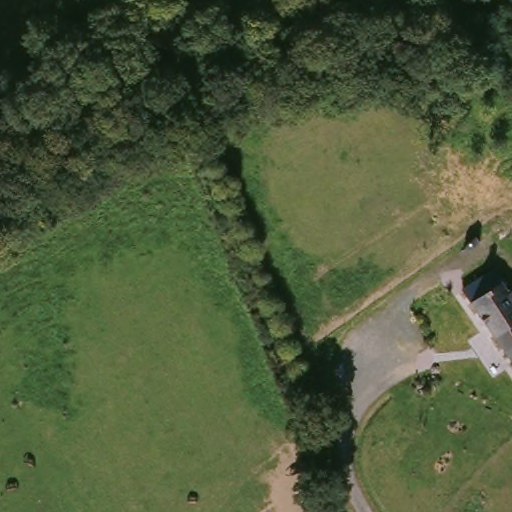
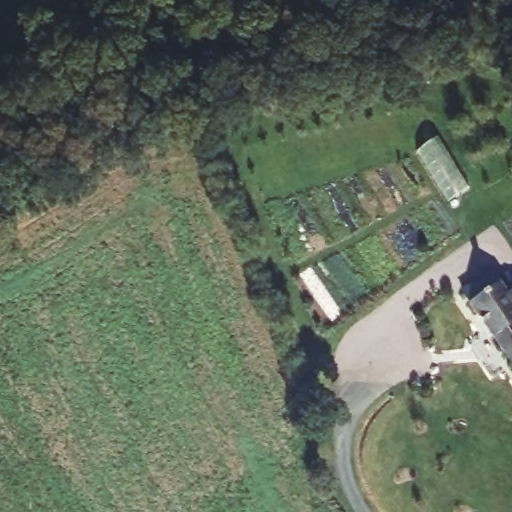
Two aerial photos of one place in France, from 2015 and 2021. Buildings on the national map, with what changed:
unchanged [(460,287),(492,266),(512,295),(512,363),(460,287)]

